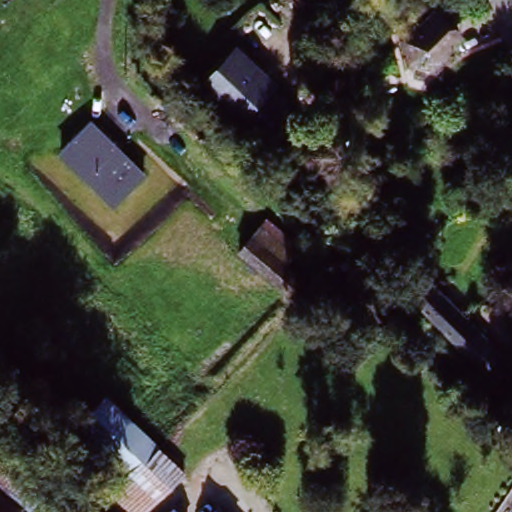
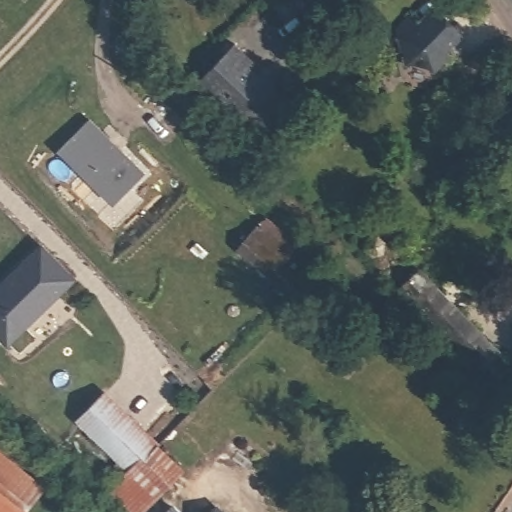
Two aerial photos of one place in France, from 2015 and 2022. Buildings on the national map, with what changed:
unchanged [(434,70),(397,66),(398,28),(417,13),(424,23),(440,9),(464,38),(448,51),(451,56),(434,70)]
unchanged [(199,83),(239,43),(279,84),(239,123),(199,83)]
unchanged [(56,150),(92,114),(149,169),(114,204),(56,150)]
unchanged [(306,309),(294,299),(236,247),(251,229),(266,212),(296,238),(282,256),(310,281),(321,292),(306,309)]
unchanged [(387,244),(375,257),(349,231),(360,219),(387,244)]
unchanged [(477,325),(469,334),(480,345),(471,354),(375,261),(392,243),(477,325)]
new [(9,348),(0,339),(0,284),(42,244),(79,279),(9,348)]
unchanged [(79,419),(105,392),(155,439),(133,462),(129,467),(79,419)]
unchanged [(160,446),(184,468),(163,490),(133,462),(155,439),(161,443),(160,446)]
unchanged [(25,511),(25,512),(0,512),(0,449),(47,485),(25,511)]
unchanged [(133,462),(163,490),(141,512),(134,512),(109,487),(129,467),(133,462)]
unchanged [(178,512),(164,512),(172,505),(178,512)]
unchanged [(223,512),(217,512),(220,509),(223,512)]

